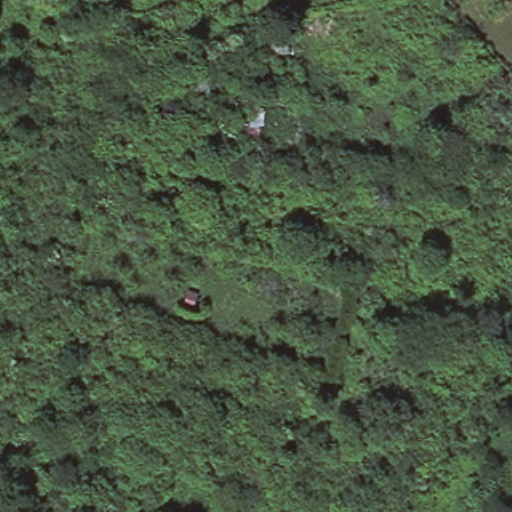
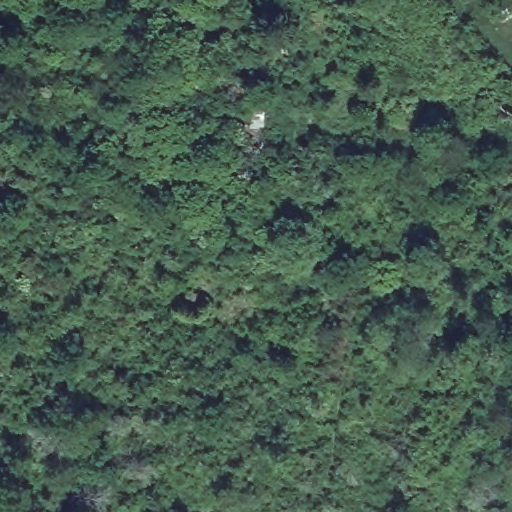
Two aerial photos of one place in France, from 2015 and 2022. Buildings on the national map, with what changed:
unchanged [(286,53),(270,52),(271,29),(287,30),(286,53)]
unchanged [(218,77),(215,96),(186,91),(190,72),(218,77)]

